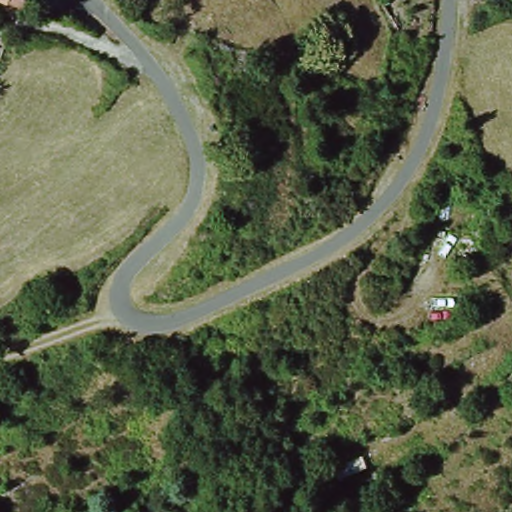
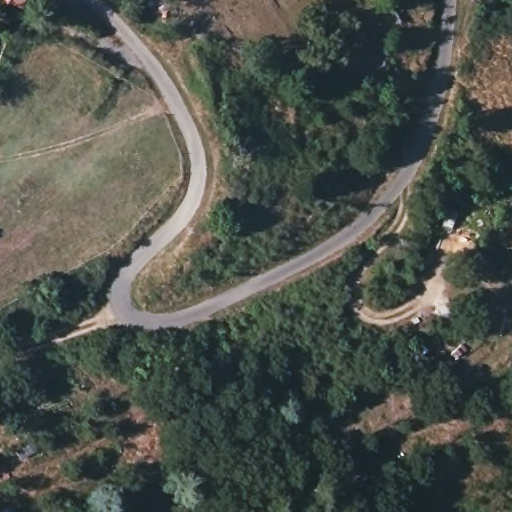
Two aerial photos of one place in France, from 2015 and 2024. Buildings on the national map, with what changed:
unchanged [(0,3),(0,0),(23,0),(19,10),(0,3)]
unchanged [(475,0),(466,4),(465,0),(475,0)]

